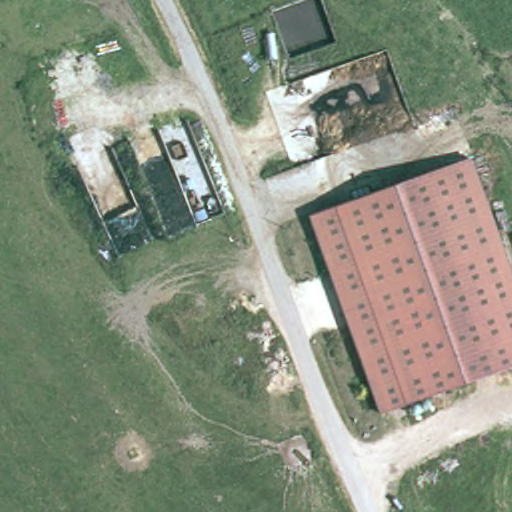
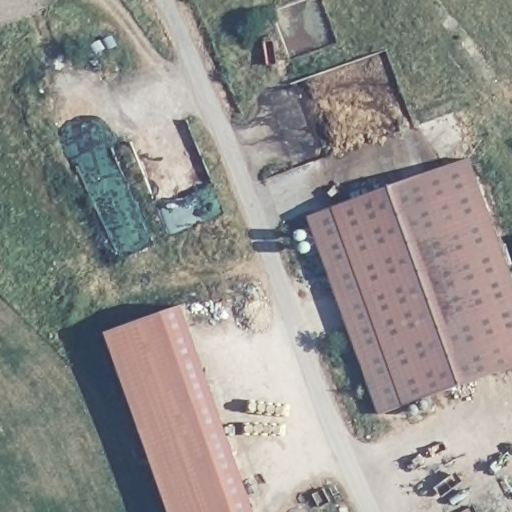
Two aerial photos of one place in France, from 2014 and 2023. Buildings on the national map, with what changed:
unchanged [(312,219),(471,161),(512,268),(512,371),(385,418),(312,219)]
new [(187,306),(258,512),(171,512),(110,333),(187,306)]

